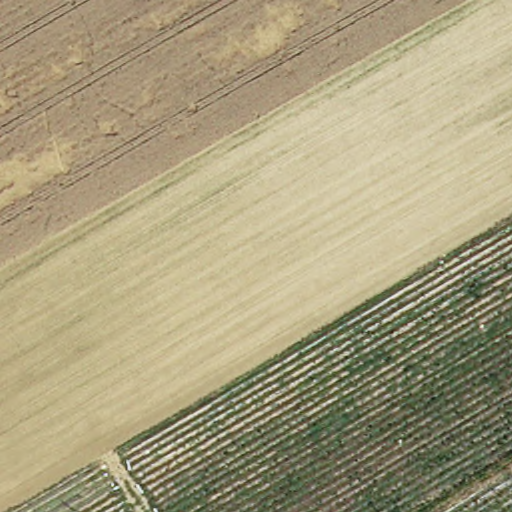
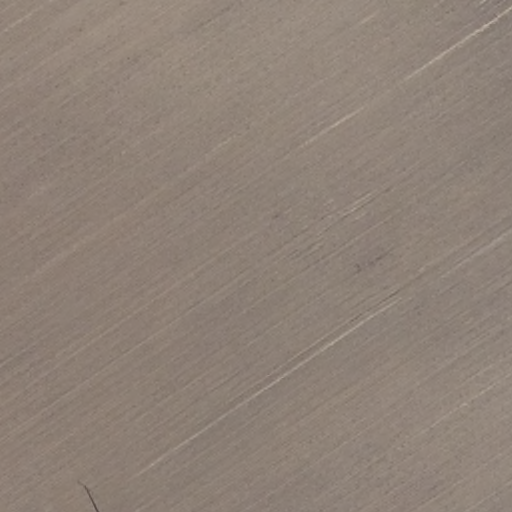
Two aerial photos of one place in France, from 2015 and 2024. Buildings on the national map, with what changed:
[]

